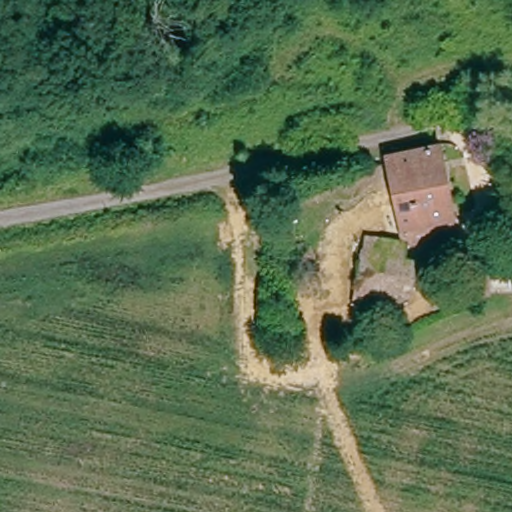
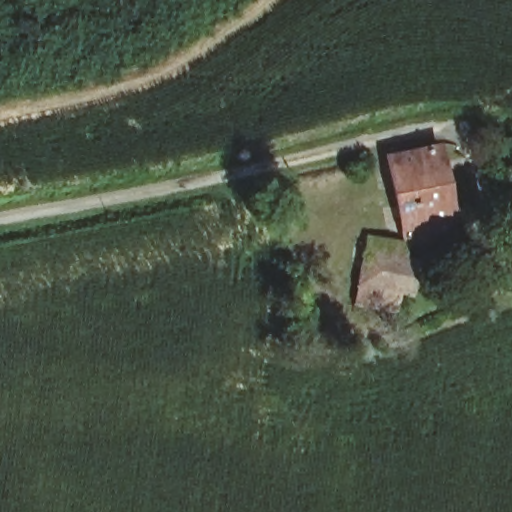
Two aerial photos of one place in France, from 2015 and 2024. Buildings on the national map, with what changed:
unchanged [(448,224),(446,225),(448,237),(407,247),(405,241),(401,242),(391,192),(383,161),(432,150),(448,224)]
unchanged [(412,298),(398,298),(396,316),(368,313),(353,311),(360,263),(367,263),(369,249),(382,250),(406,253),(404,267),(416,269),(412,298)]
unchanged [(509,297),(486,301),(481,272),(503,266),(509,297)]

